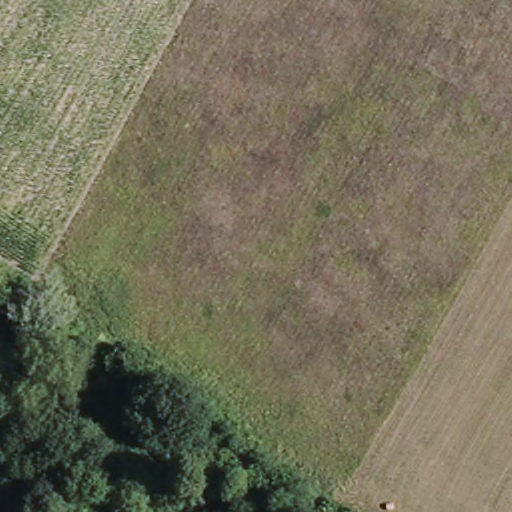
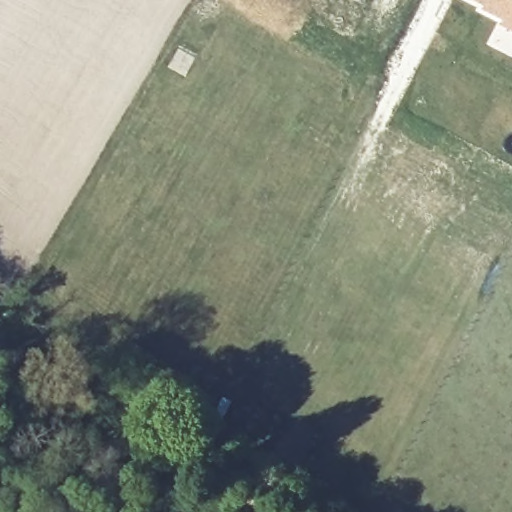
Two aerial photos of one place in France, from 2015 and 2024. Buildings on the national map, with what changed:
new [(507,20),(485,10),(487,5),(476,0),(512,0),(512,29),(505,25),(507,20)]

